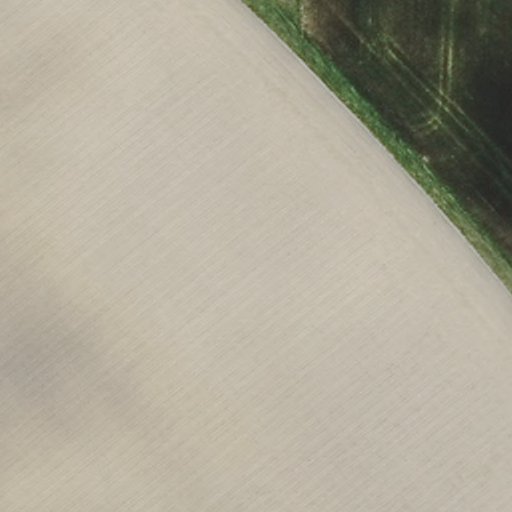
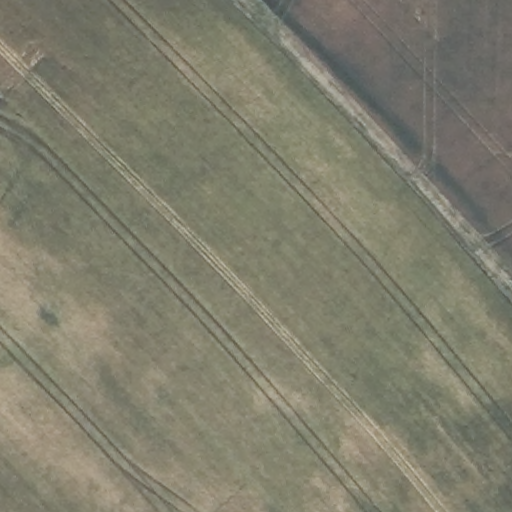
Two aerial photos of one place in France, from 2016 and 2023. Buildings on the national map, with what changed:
[]

